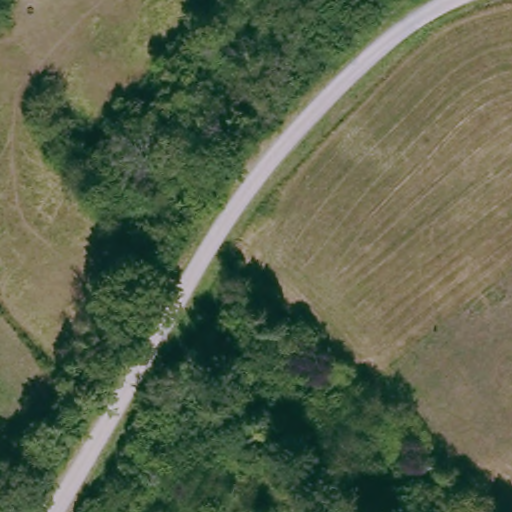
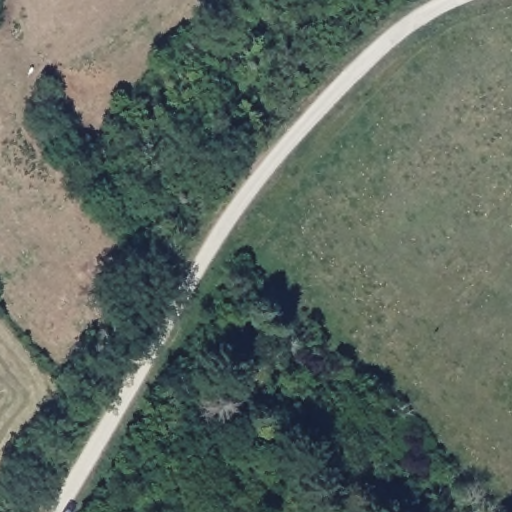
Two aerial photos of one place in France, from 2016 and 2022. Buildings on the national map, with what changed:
unchanged [(169,430),(154,456),(140,446),(157,421),(169,430)]

